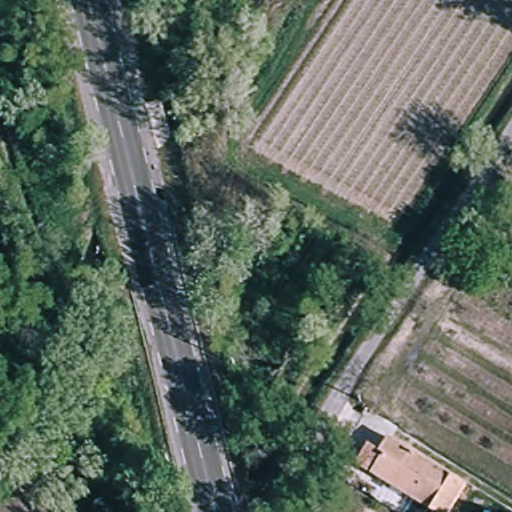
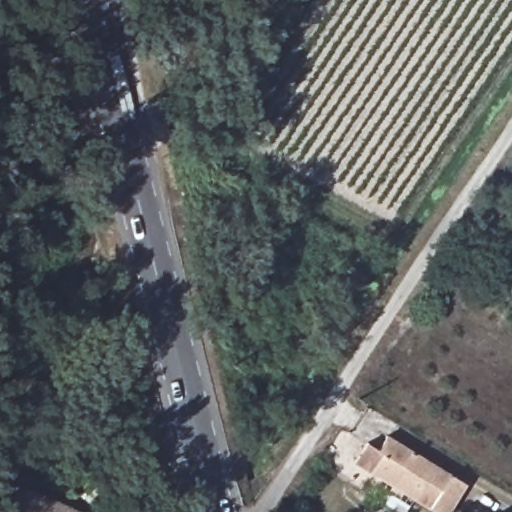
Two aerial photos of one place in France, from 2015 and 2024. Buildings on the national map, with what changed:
unchanged [(448,512),(434,512),(354,462),(366,442),(378,449),(387,435),(466,483),(448,512)]
unchanged [(68,505),(82,512),(0,512),(0,503),(12,482),(68,505)]

